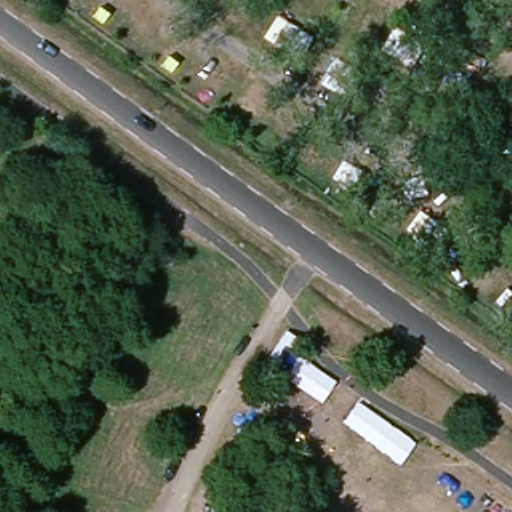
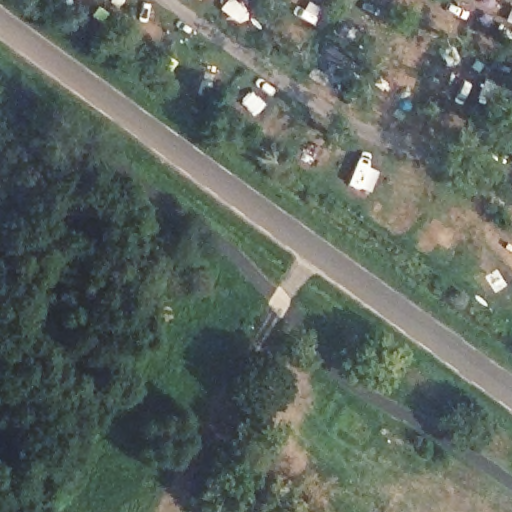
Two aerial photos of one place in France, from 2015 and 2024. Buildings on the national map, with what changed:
[]

